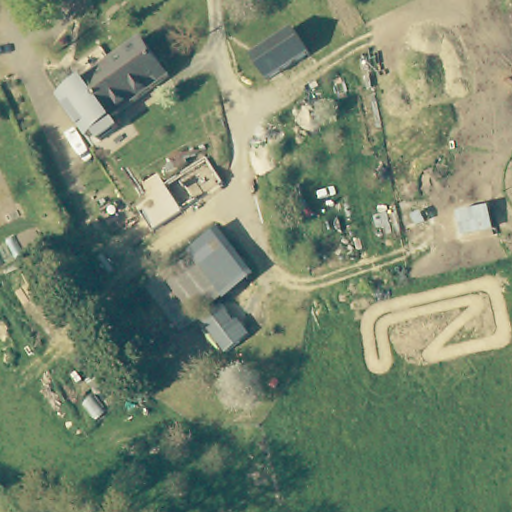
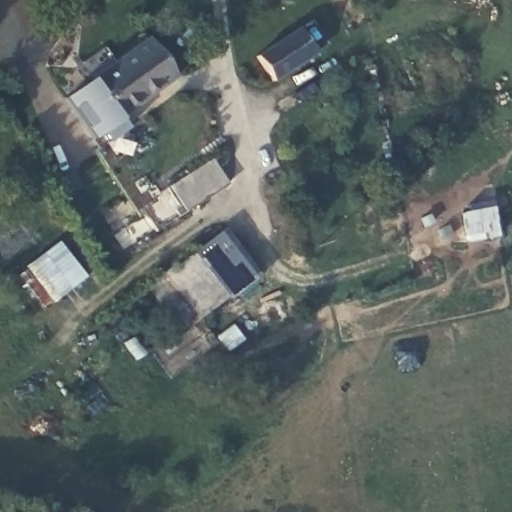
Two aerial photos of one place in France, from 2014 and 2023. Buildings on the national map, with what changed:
unchanged [(318,59),(276,86),(260,61),(301,34),(318,59)]
unchanged [(117,119),(124,129),(101,146),(66,97),(145,40),(173,78),(117,119)]
unchanged [(220,233),(233,249),(253,274),(240,284),(183,331),(148,288),(183,260),(219,231),(220,233)]
new [(58,302),(29,266),(59,242),(88,278),(58,302)]
unchanged [(252,324),(250,326),(248,315),(252,324)]

